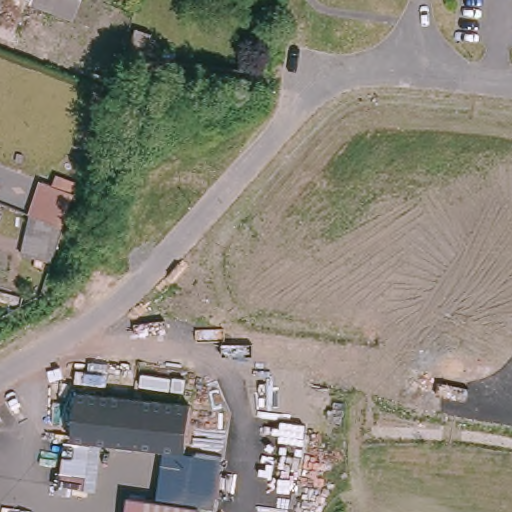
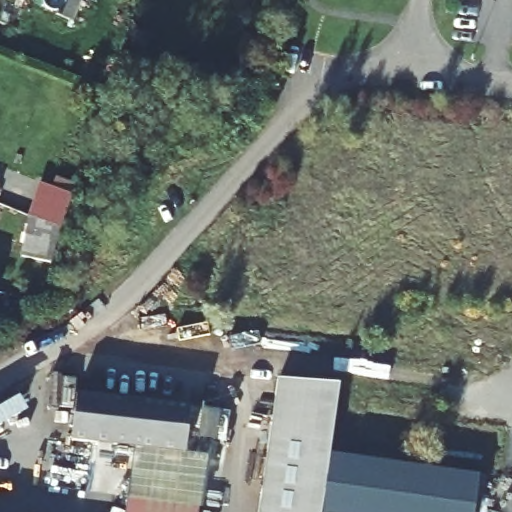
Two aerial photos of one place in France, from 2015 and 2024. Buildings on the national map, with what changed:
demolished [(47,5),(34,0),(17,42),(0,36),(0,31),(11,0),(48,0),(47,5)]
unchanged [(64,15),(69,0),(83,0),(76,17),(64,15)]
demolished [(70,31),(63,28),(66,20),(74,23),(70,31)]
unchanged [(61,229),(34,221),(46,185),(73,193),(61,229)]
unchanged [(0,190),(0,187),(1,187),(0,190)]
unchanged [(22,256),(34,221),(61,229),(51,263),(22,256)]
new [(480,476),(474,512),(259,512),(277,380),(338,385),(331,454),(480,476)]
unchanged [(77,395),(192,408),(187,454),(72,441),(77,395)]
demolished [(7,465),(0,464),(0,439),(10,440),(7,465)]
unchanged [(197,512),(126,512),(128,498),(157,502),(198,508),(197,512)]

